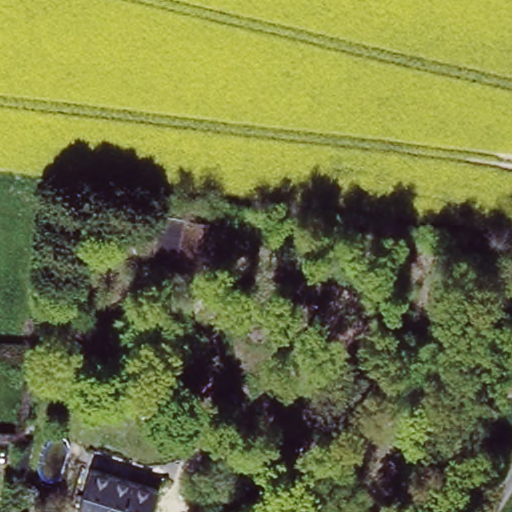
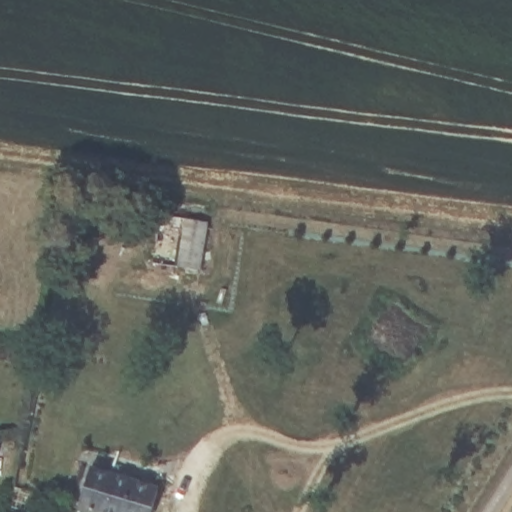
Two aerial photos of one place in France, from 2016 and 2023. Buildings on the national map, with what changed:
unchanged [(202,223),(197,269),(182,270),(176,266),(183,222),(202,223)]
unchanged [(0,448),(0,434),(2,434),(0,448)]
unchanged [(155,512),(110,512),(85,504),(97,465),(166,483),(155,512)]

